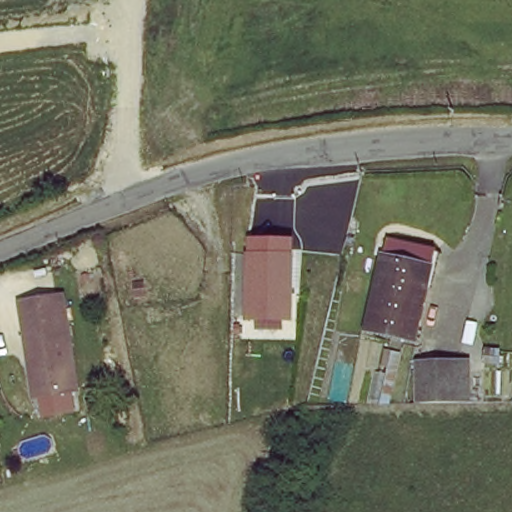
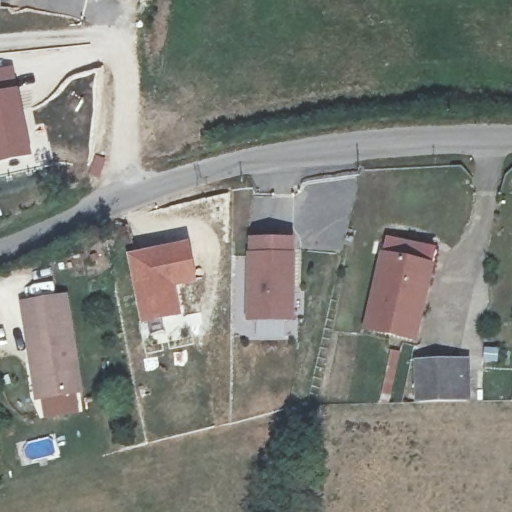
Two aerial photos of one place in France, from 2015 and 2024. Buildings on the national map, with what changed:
new [(13,66),(32,156),(0,162),(0,69),(13,66)]
unchanged [(366,328),(389,240),(435,252),(413,340),(366,328)]
new [(175,288),(181,316),(142,324),(127,255),(188,244),(195,283),(175,288)]
unchanged [(247,316),(251,252),(294,255),(290,319),(247,316)]
unchanged [(32,359),(24,300),(65,295),(79,389),(48,393),(37,395),(32,359)]
unchanged [(416,363),(452,362),(467,362),(467,406),(452,406),(416,407),(416,363)]

